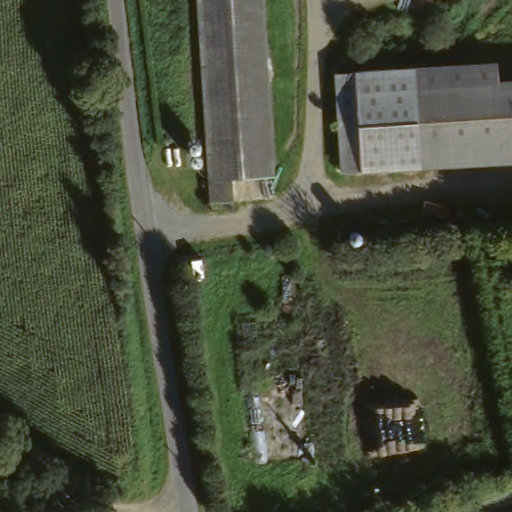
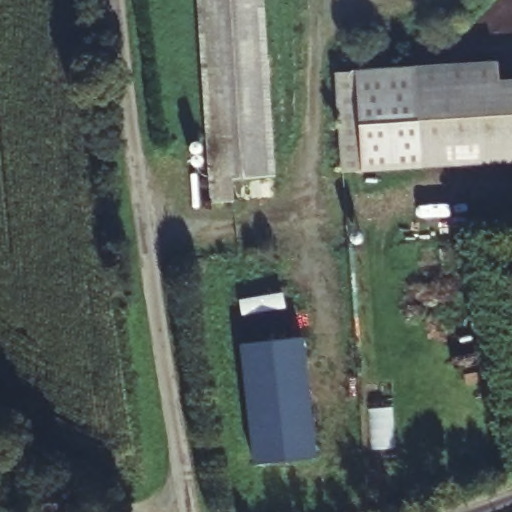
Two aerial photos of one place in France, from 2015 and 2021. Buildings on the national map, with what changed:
unchanged [(235,185),(235,204),(214,207),(198,0),(259,0),(272,180),(235,185)]
unchanged [(501,91),(512,90),(512,155),(420,164),(342,171),(335,85),(414,79),(500,73),(501,91)]
new [(317,456),(252,465),(240,345),(302,338),(317,456)]

